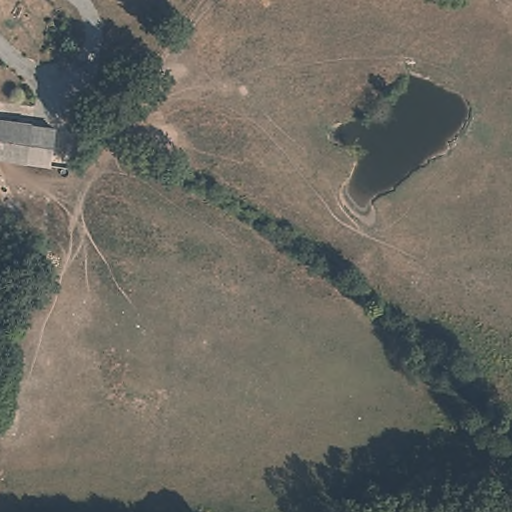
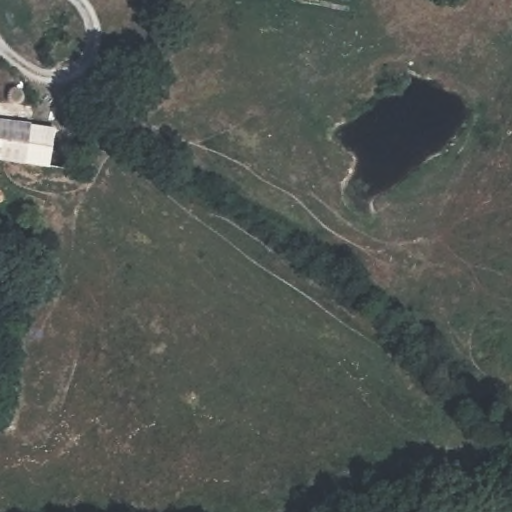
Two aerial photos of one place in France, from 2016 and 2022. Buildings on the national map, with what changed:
unchanged [(63,154),(61,167),(55,166),(31,162),(0,157),(0,123),(37,129),(67,135),(63,154)]

